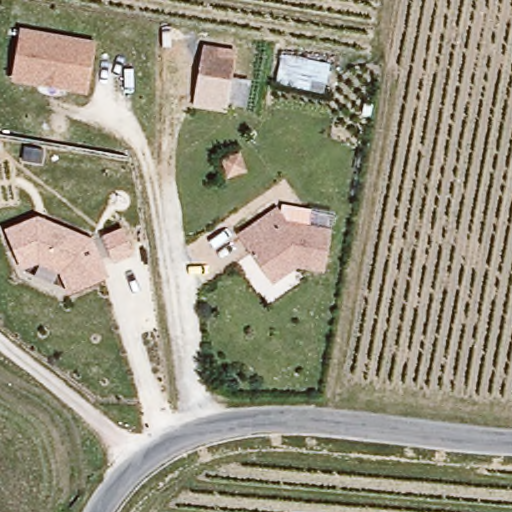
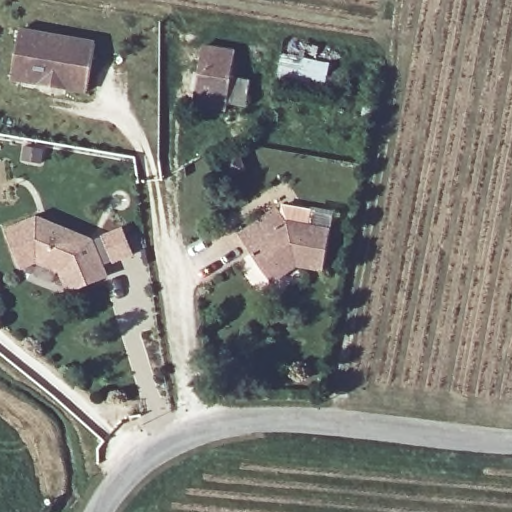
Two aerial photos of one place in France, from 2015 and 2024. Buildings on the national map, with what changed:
unchanged [(96,41),(87,93),(10,80),(20,28),(96,41)]
unchanged [(237,49),(232,76),(250,80),(245,109),(227,105),(225,112),(192,106),(202,43),(237,49)]
unchanged [(330,63),(323,94),(274,84),(281,51),(330,63)]
unchanged [(242,149),(249,171),(225,179),(219,157),(242,149)]
unchanged [(279,275),(246,228),(285,201),(295,215),(338,223),(331,262),(305,257),(295,264),(279,275)]
unchanged [(35,214),(94,238),(124,226),(134,255),(105,267),(109,278),(68,294),(59,273),(36,262),(20,269),(2,229),(35,214)]

